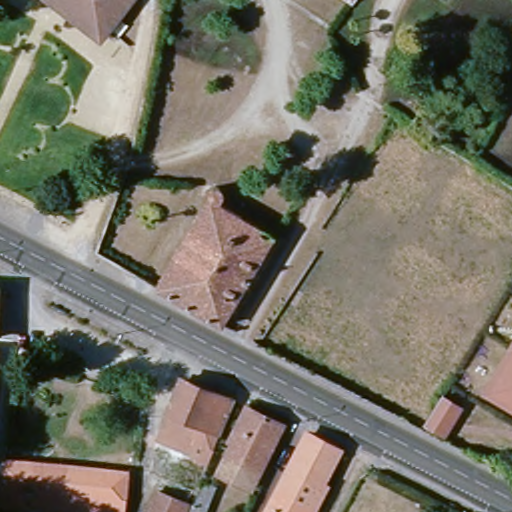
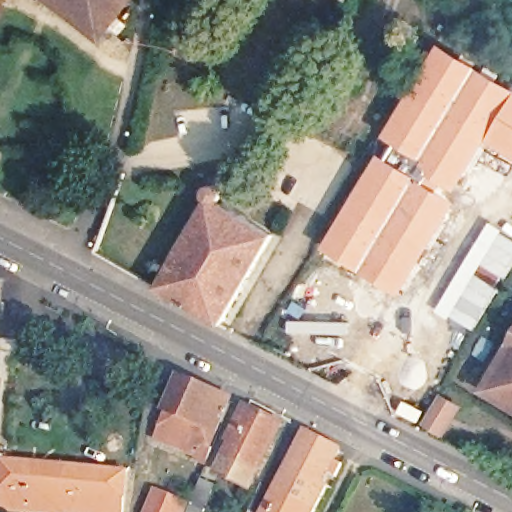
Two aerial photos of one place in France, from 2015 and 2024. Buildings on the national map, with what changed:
unchanged [(107,22),(101,30),(94,41),(43,0),(125,0),(118,7),(107,22)]
unchanged [(345,5),(338,0),(348,0),(345,5)]
new [(419,73),(439,43),(488,71),(512,85),(512,160),(488,147),(453,199),(386,157),(394,144),(383,136),(419,73)]
new [(338,221),(380,152),(386,157),(453,199),(456,201),(442,227),(398,296),(322,249),(338,221)]
unchanged [(152,290),(202,204),(202,201),(201,198),(202,195),(204,192),(206,191),(210,191),(213,192),(216,196),(216,199),(216,201),(213,207),(267,238),(216,326),(152,290)]
new [(489,221),(512,237),(512,267),(474,330),(434,310),(489,221)]
unchanged [(496,390),(490,387),(501,367),(512,349),(512,399),(496,390)]
unchanged [(152,426),(172,378),(225,401),(205,447),(207,449),(201,465),(190,461),(192,457),(151,441),(156,428),(152,426)]
unchanged [(441,393),(459,405),(443,431),(425,420),(441,393)]
unchanged [(228,435),(241,412),(255,420),(275,431),(244,492),(213,477),(232,437),(228,435)]
unchanged [(319,482),(327,487),(314,511),(274,487),(284,471),(288,472),(309,435),(337,448),(319,482)]
unchanged [(122,512),(39,512),(24,511),(0,508),(0,473),(1,460),(125,472),(122,512)]
unchanged [(201,481),(214,487),(205,511),(205,512),(189,512),(191,506),(201,481)]
unchanged [(314,511),(314,512),(262,512),(274,487),(314,511)]
unchanged [(186,512),(147,512),(155,493),(188,507),(186,512)]

